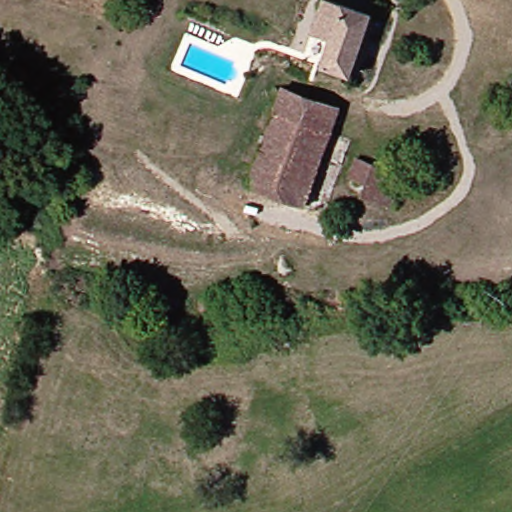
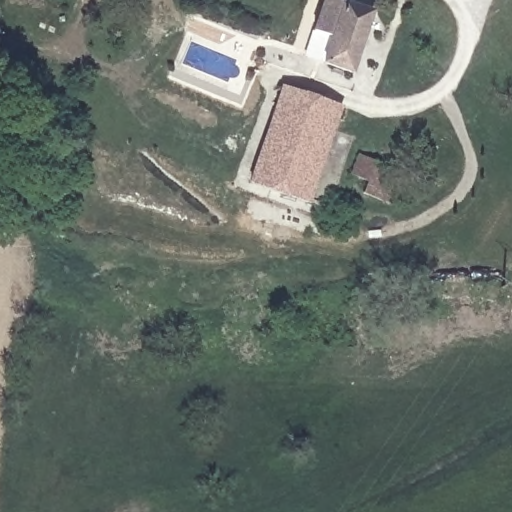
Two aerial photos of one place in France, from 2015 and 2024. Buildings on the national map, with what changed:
unchanged [(355,74),(325,59),(338,34),(320,24),(330,0),(345,0),(353,4),(382,18),(355,74)]
unchanged [(292,83),(350,103),(340,131),(282,110),(292,83)]
unchanged [(361,139),(335,211),(275,189),(270,201),(250,194),(282,110),(340,131),(361,139)]
unchanged [(387,201),(349,188),(355,173),(361,155),(376,160),(407,171),(401,190),(396,205),(387,201)]

